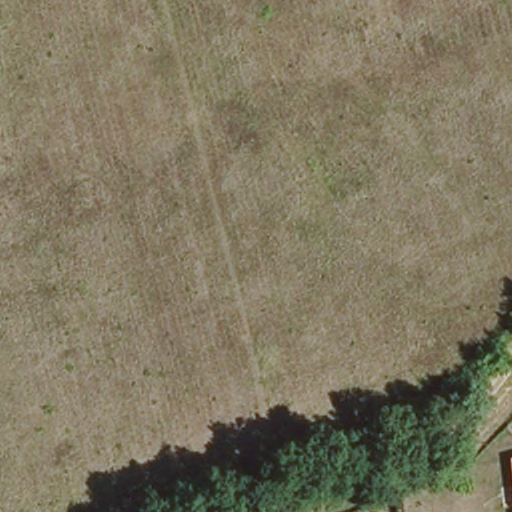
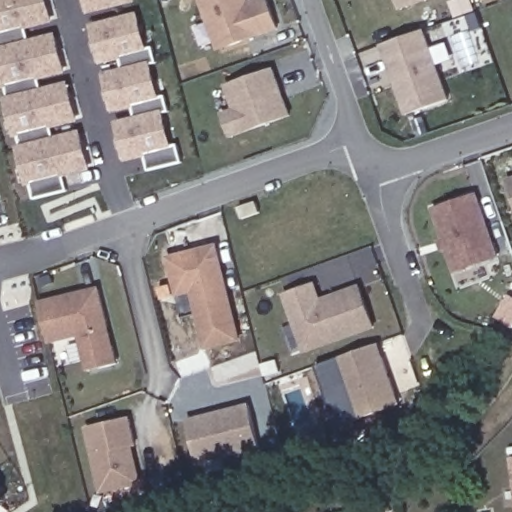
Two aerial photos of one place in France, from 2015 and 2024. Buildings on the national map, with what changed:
new [(26,188),(15,147),(20,145),(17,137),(14,138),(3,99),(8,96),(6,89),(1,90),(0,85),(0,0),(50,0),(56,23),(29,30),(31,40),(58,33),(67,74),(41,81),(43,89),(70,81),(79,123),(53,129),(55,137),(82,131),(92,171),(65,178),(68,192),(34,200),(30,187),(26,188)]
new [(137,0),(137,3),(88,16),(85,0),(137,0)]
new [(217,50),(200,0),(249,0),(270,0),(279,30),(217,50)]
new [(396,0),(428,0),(400,10),(396,0)]
new [(145,159),(124,164),(114,121),(135,117),(133,110),(112,114),(102,73),(122,69),(120,61),(100,66),(90,25),(139,13),(148,49),(154,47),(158,64),(153,65),(161,96),(166,96),(170,111),(164,113),(173,146),(178,145),(182,163),(148,171),(145,159)]
new [(419,31),(444,101),(403,116),(378,46),(419,31)]
new [(225,85),(275,68),(291,116),(230,138),(222,113),(234,109),(225,85)]
new [(506,179),(512,177),(512,197),(506,179)]
new [(441,253),(437,240),(443,239),(432,209),(478,192),(501,258),(455,274),(447,251),(441,253)]
new [(206,349),(191,294),(177,297),(167,256),(218,245),(242,341),(206,349)]
new [(321,298),(360,285),(376,329),(303,354),(282,293),(316,282),(321,298)]
new [(119,363),(86,372),(77,338),(49,345),(39,301),(100,287),(119,363)]
new [(401,405),(356,421),(334,358),(380,343),(401,405)]
new [(186,420),(249,404),(260,450),(197,466),(186,420)]
new [(132,447),(140,486),(101,494),(85,428),(130,417),(136,445),(132,447)]
unchanged [(507,458),(512,457),(512,496),(507,458)]
new [(0,504),(0,495),(4,502),(0,504)]

